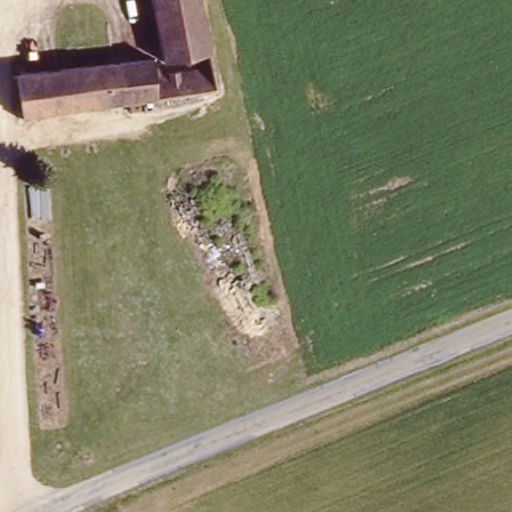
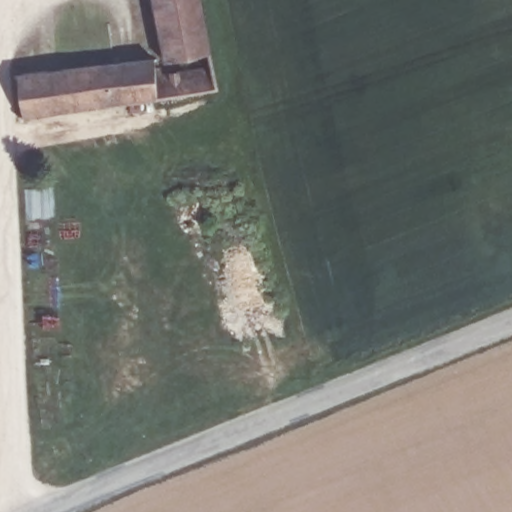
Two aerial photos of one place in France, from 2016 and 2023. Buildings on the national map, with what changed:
unchanged [(205,51),(158,61),(146,0),(194,0),(205,51)]
unchanged [(147,58),(149,75),(207,65),(211,87),(16,117),(10,74),(147,58)]

